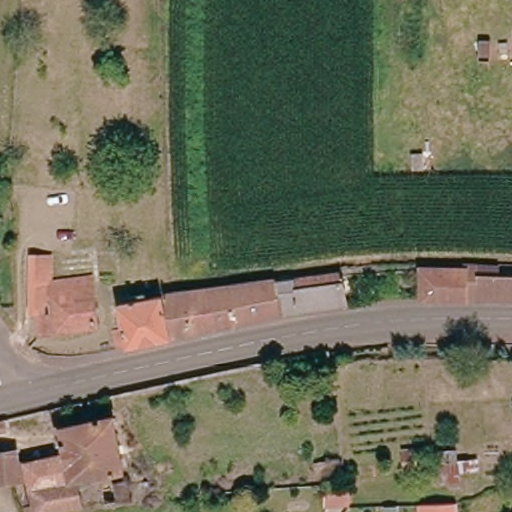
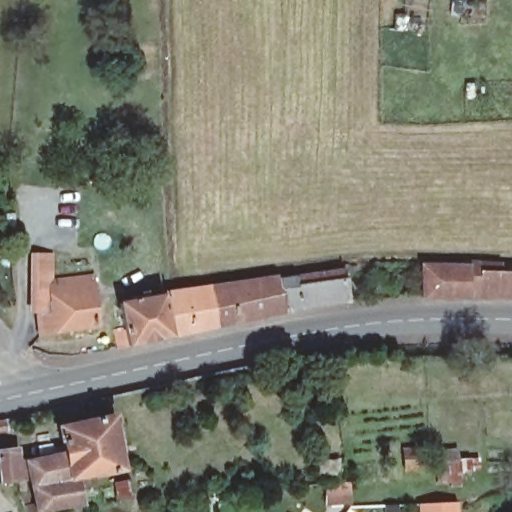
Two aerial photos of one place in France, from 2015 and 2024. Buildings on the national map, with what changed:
unchanged [(22,316),(21,302),(21,259),(50,260),(50,287),(92,281),(98,332),(41,341),(41,339),(22,341),(22,316)]
unchanged [(418,302),(417,272),(468,272),(469,269),(512,270),(512,304),(468,303),(418,302)]
unchanged [(221,327),(214,291),(258,285),(283,282),(285,289),(348,280),(352,301),(289,313),(265,318),(240,323),(221,327)]
unchanged [(221,327),(179,336),(171,297),(214,291),(221,327)]
unchanged [(176,337),(122,348),(118,328),(129,326),(125,304),(168,296),(176,337)]
unchanged [(35,506),(27,463),(67,456),(62,428),(113,418),(125,471),(78,481),(84,507),(52,512),(27,512),(25,508),(35,506)]
unchanged [(9,429),(0,431),(0,420),(6,419),(9,429)]
unchanged [(19,481),(0,484),(0,452),(15,450),(19,481)]
unchanged [(348,504),(326,506),(325,483),(345,482),(348,504)]
unchanged [(457,512),(421,512),(420,504),(456,502),(457,512)]

